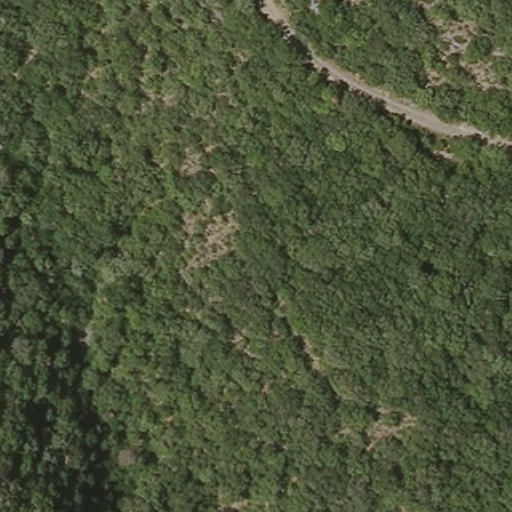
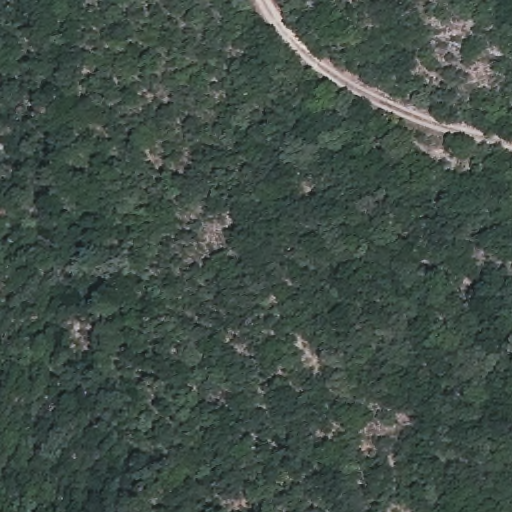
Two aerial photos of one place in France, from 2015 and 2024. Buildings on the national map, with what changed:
[]

